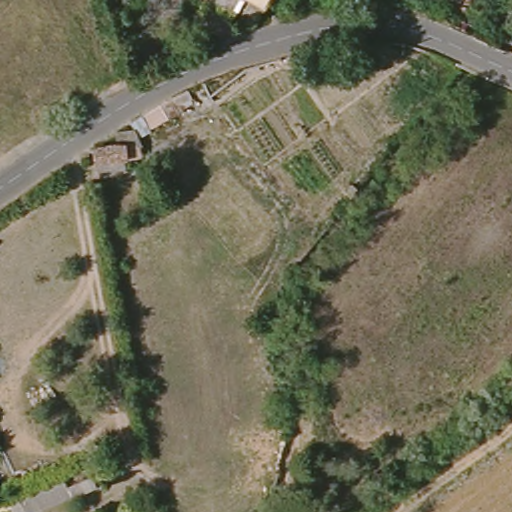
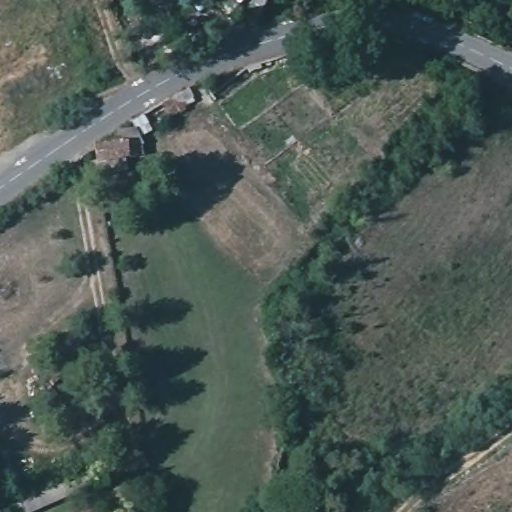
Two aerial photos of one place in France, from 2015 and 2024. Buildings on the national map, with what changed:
unchanged [(263,0),(250,22),(214,0),(263,0)]
unchanged [(102,158),(100,138),(131,134),(134,152),(107,157),(102,158)]

